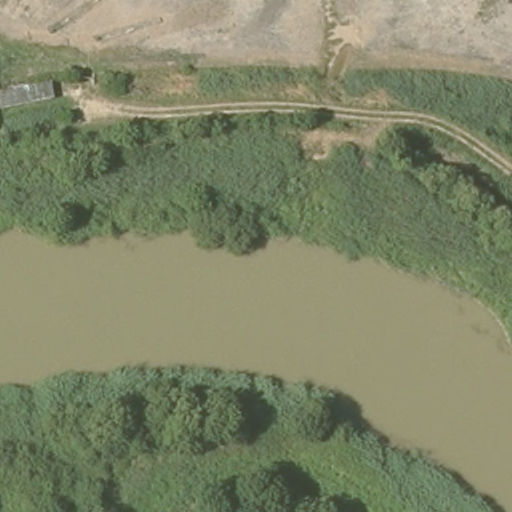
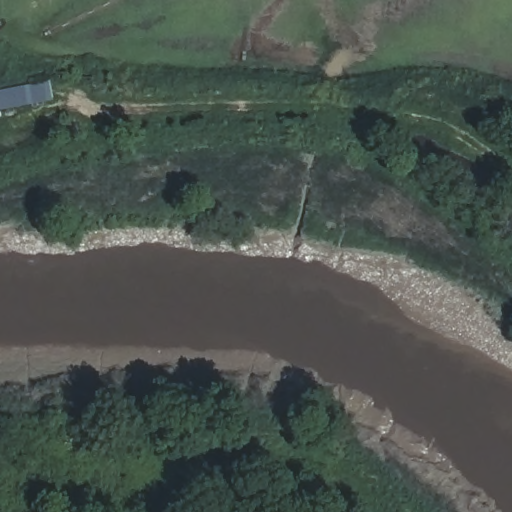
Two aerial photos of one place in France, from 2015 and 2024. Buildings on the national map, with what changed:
unchanged [(0,108),(0,90),(45,80),(48,97),(0,108)]

